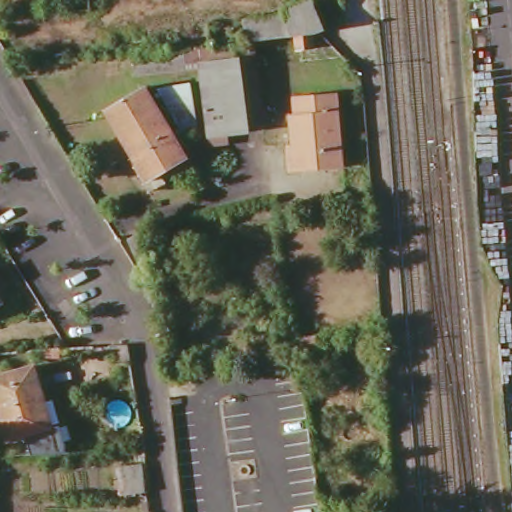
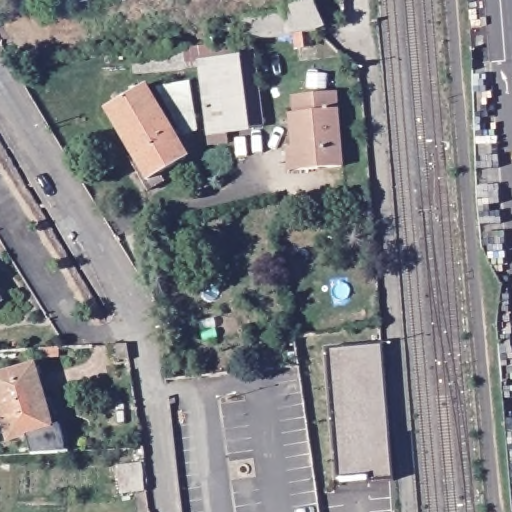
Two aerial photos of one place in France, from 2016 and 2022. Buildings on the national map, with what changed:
unchanged [(309,34),(312,49),(297,49),(290,35),(252,38),(260,126),(245,132),(226,134),(226,146),(203,145),(204,134),(203,127),(174,134),(187,158),(145,182),(105,112),(145,85),(197,81),(196,62),(130,73),(129,54),(234,44),(242,44),(241,18),(280,11),(307,0),(311,0),(322,30),(309,34)]
unchanged [(284,110),(288,109),(287,92),(330,90),(333,134),(285,138),(284,110)]
unchanged [(291,146),(285,146),(285,138),(333,134),(335,167),(292,169),(291,146)]
unchanged [(125,241),(138,235),(150,258),(137,264),(125,241)]
unchanged [(110,345),(127,344),(130,359),(111,360),(110,345)]
new [(382,345),(393,480),(368,482),(367,475),(337,477),(326,349),(382,345)]
unchanged [(3,438),(0,427),(0,373),(28,364),(47,424),(53,422),(58,437),(59,440),(60,452),(26,453),(20,433),(3,438)]

